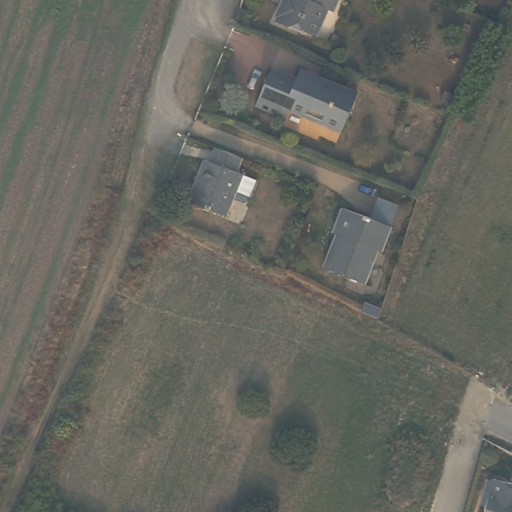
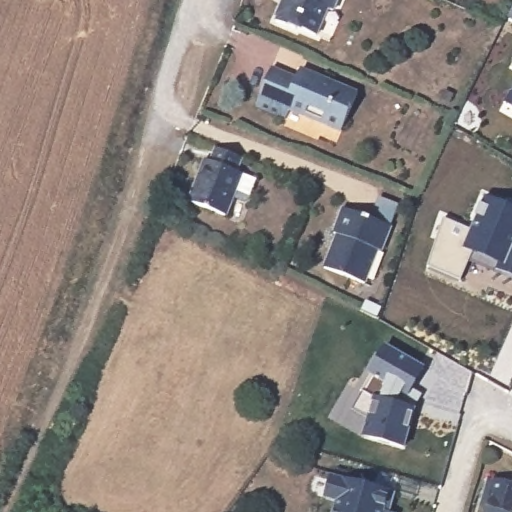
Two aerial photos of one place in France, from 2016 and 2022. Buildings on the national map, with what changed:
unchanged [(327,5),(314,32),(295,24),(293,26),(275,17),(277,13),(275,12),(281,0),(334,0),(331,7),(327,5)]
unchanged [(251,101),(267,65),(292,75),(295,67),(313,75),(314,73),(353,90),(337,127),(284,105),(281,114),(251,101)]
new [(505,102),(512,89),(512,107),(505,102)]
unchanged [(211,152),(238,162),(232,176),(239,179),(252,185),(244,204),(239,206),(229,202),(221,221),(184,206),(200,164),(206,165),(211,152)]
new [(472,228),(487,195),(512,206),(512,278),(495,271),(499,263),(474,252),(461,281),(427,266),(444,218),(472,228)]
unchanged [(333,235),(343,210),(390,230),(381,254),(377,252),(364,285),(324,270),(337,236),(333,235)]
new [(412,390),(421,395),(415,409),(404,446),(363,437),(367,421),(351,410),(371,375),(368,372),(385,345),(423,368),(412,390)]
unchanged [(490,486),(484,484),(488,471),(506,476),(508,475),(512,476),(512,512),(481,512),(490,486)]
new [(336,502),(325,499),(331,475),(390,491),(385,512),(333,512),(336,502)]

